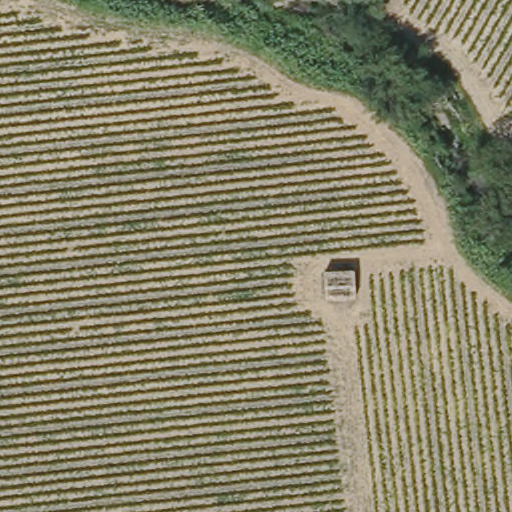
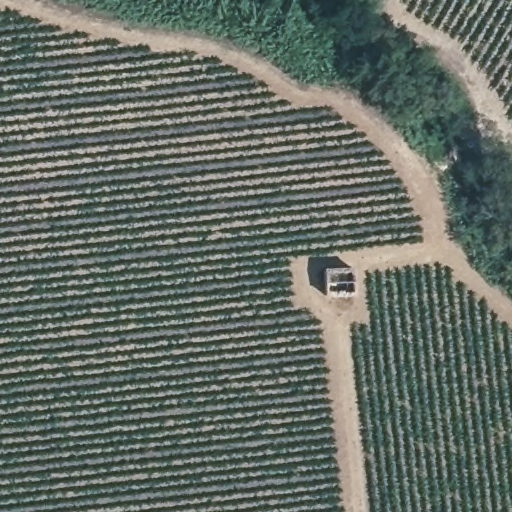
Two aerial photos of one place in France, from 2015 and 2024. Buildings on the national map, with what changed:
unchanged [(324,270),(355,267),(358,297),(328,299),(324,270)]

